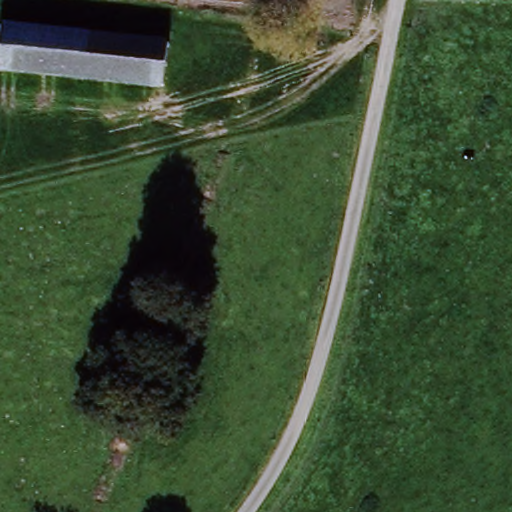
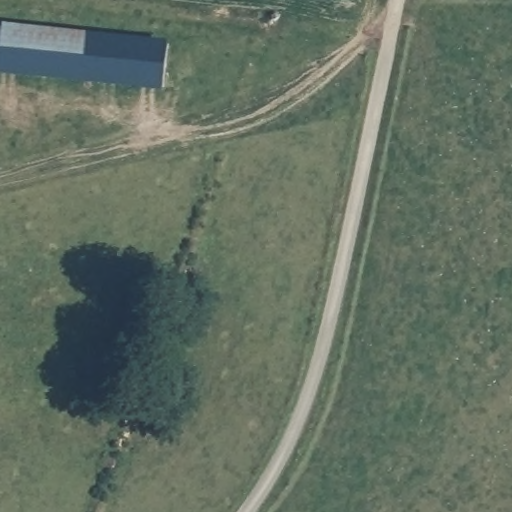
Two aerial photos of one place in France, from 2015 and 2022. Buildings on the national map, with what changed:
unchanged [(168,45),(163,87),(0,67),(0,52),(3,24),(168,45)]

